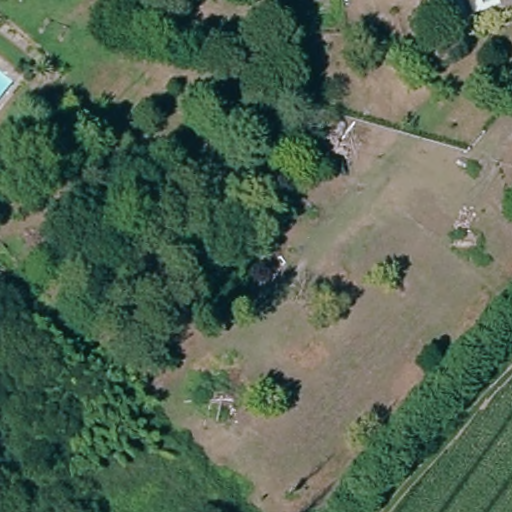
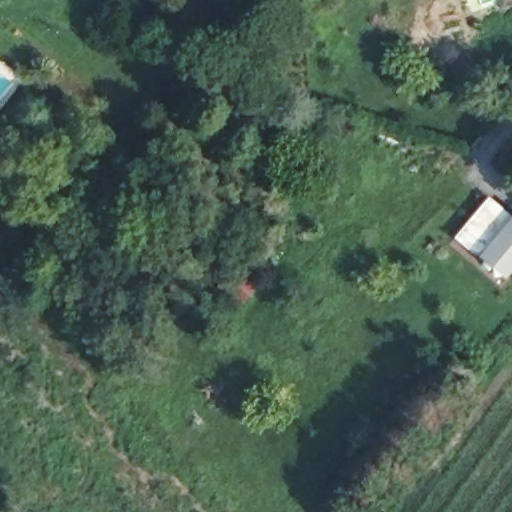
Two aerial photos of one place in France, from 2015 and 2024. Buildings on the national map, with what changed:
new [(489,197),(512,217),(476,258),(453,238),(489,197)]
new [(512,217),(512,216),(512,245),(491,270),(476,258),(512,217)]
new [(512,245),(512,272),(504,281),(491,270),(512,245)]

